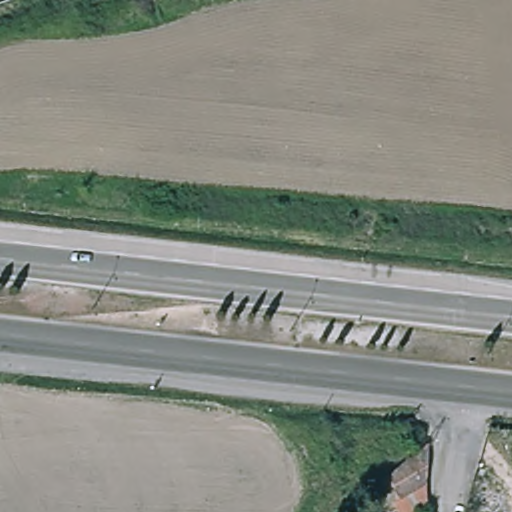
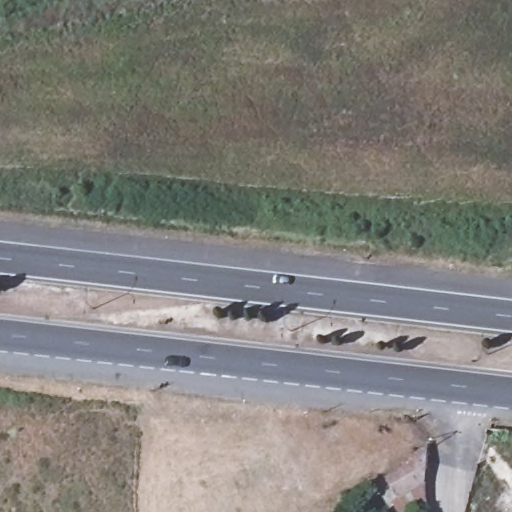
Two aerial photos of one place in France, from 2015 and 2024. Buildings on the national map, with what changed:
unchanged [(412,444),(430,466),(431,467),(430,473),(429,492),(402,506),(375,475),(412,444)]

